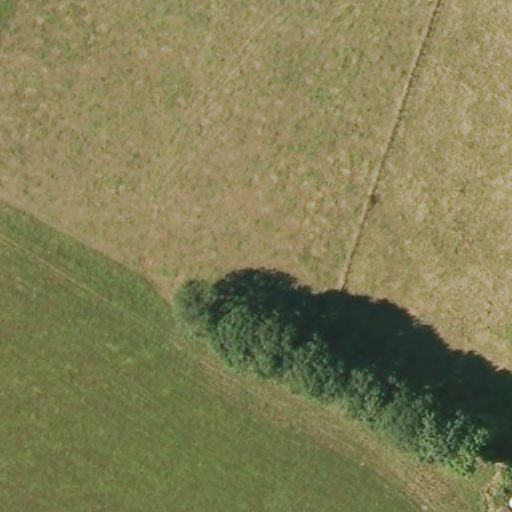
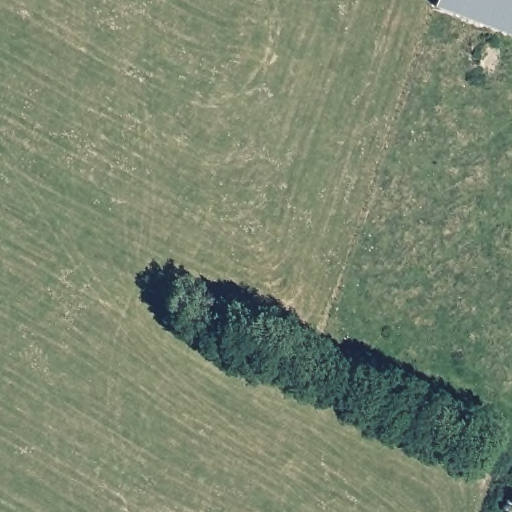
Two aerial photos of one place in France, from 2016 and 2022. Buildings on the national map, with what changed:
new [(434,8),(438,0),(512,0),(512,37),(434,8)]

